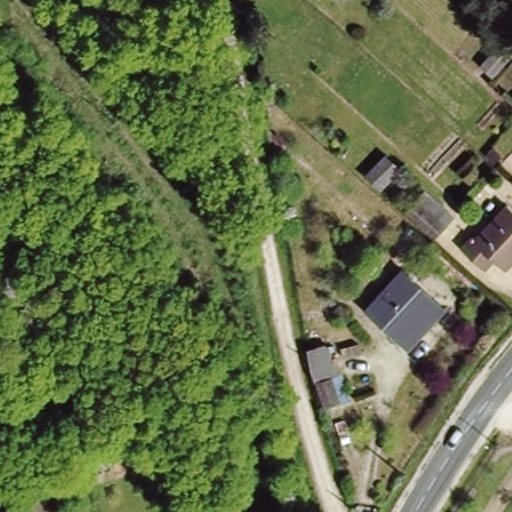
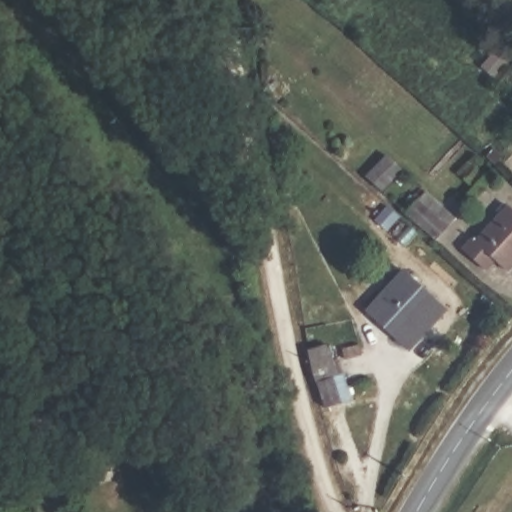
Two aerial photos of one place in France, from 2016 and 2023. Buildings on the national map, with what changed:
unchanged [(485,237),(512,205),(512,260),(503,252),(495,262),(491,259),(488,262),(468,245),(479,231),(485,237)]
unchanged [(397,262),(447,301),(415,342),(365,303),(397,262)]
unchanged [(347,345),(333,352),(355,396),(325,410),(301,345),(315,341),(300,282),(323,277),(347,345)]

